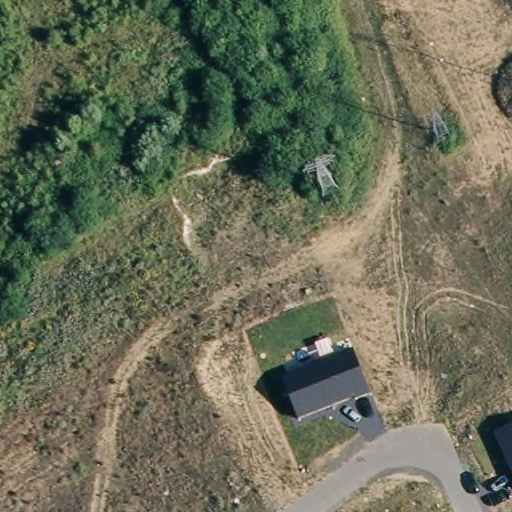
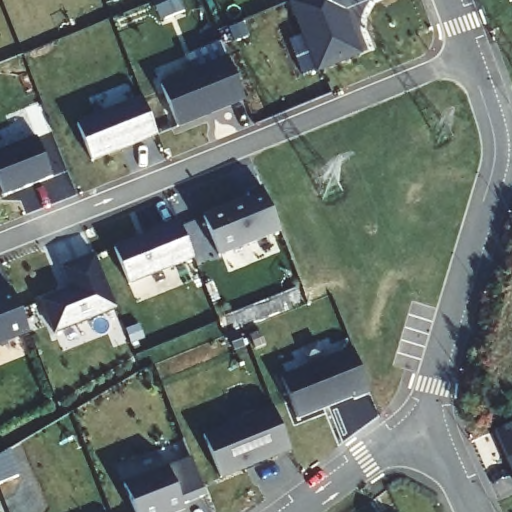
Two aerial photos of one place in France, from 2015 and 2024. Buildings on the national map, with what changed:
new [(343,6),(360,50),(318,67),(291,0),(355,0),(343,6)]
new [(228,54),(246,98),(179,126),(161,81),(228,54)]
new [(157,132),(93,159),(78,120),(142,95),(157,132)]
new [(37,134),(53,174),(4,194),(0,182),(0,149),(37,134)]
new [(248,197),(246,193),(263,186),(281,231),(220,255),(204,214),(248,197)]
new [(179,219),(193,257),(131,284),(115,245),(179,219)]
new [(95,253),(117,309),(54,333),(41,301),(71,289),(63,266),(95,253)]
new [(12,287),(29,331),(0,343),(0,291),(12,287)]
unchanged [(370,392),(299,417),(283,373),(354,348),(370,392)]
unchanged [(290,450),(223,477),(205,433),(274,405),(290,450)]
unchanged [(512,425),(512,473),(495,432),(512,425)]
unchanged [(6,448),(17,475),(0,481),(0,452),(6,448)]
new [(206,494),(182,502),(184,507),(172,512),(136,512),(125,480),(191,457),(206,494)]

